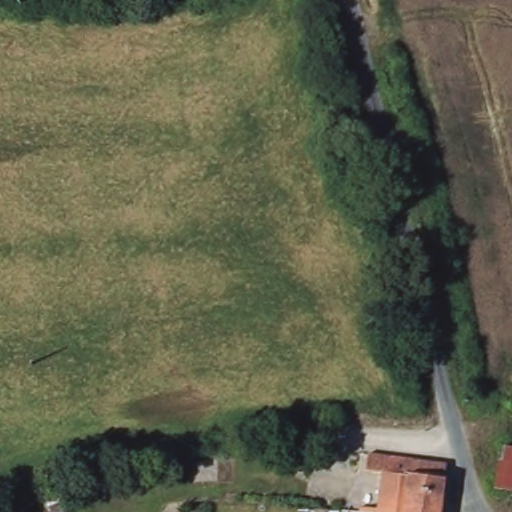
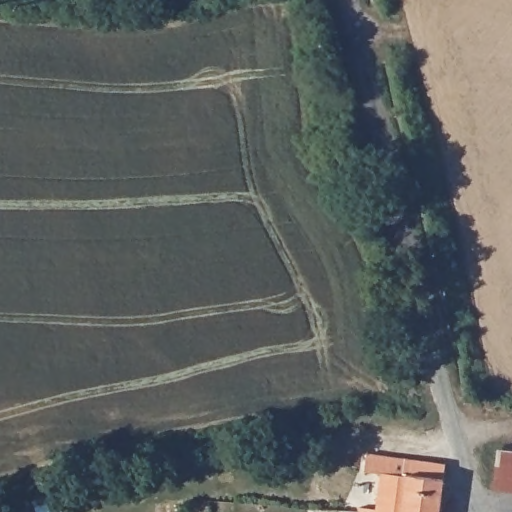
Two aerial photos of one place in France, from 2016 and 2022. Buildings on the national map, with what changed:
unchanged [(512,424),(512,487),(503,486),(510,437),(512,424)]
unchanged [(394,469),(413,471),(413,474),(409,512),(377,512),(381,472),(365,468),(366,448),(396,452),(394,469)]
unchanged [(413,471),(394,469),(396,452),(452,459),(445,512),(409,512),(413,471)]

